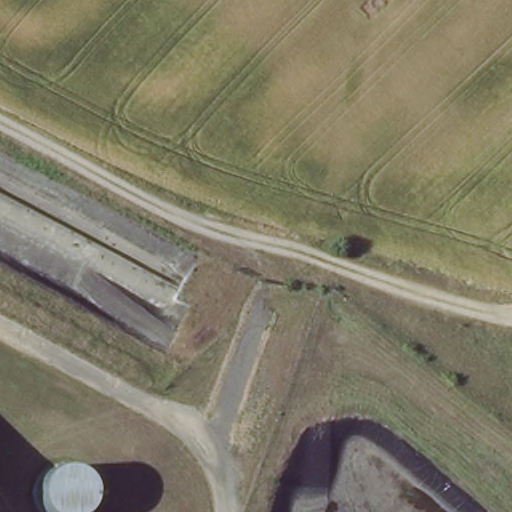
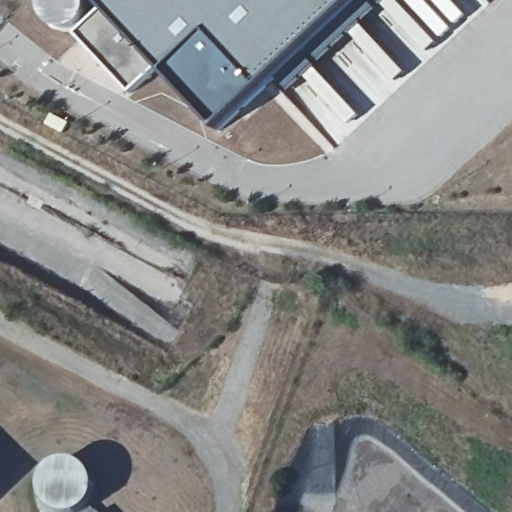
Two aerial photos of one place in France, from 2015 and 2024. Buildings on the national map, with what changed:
new [(148,62),(120,90),(74,41),(102,14),(89,0),(344,0),(210,128),(148,62)]
unchanged [(46,491),(49,485),(53,480),(58,477),(64,475),(70,474),(76,475),(81,477),(86,481),(90,485),(93,491),(94,497),(93,503),(91,509),(91,510),(93,512),(50,512),(47,508),(45,503),(45,496),(46,491)]

